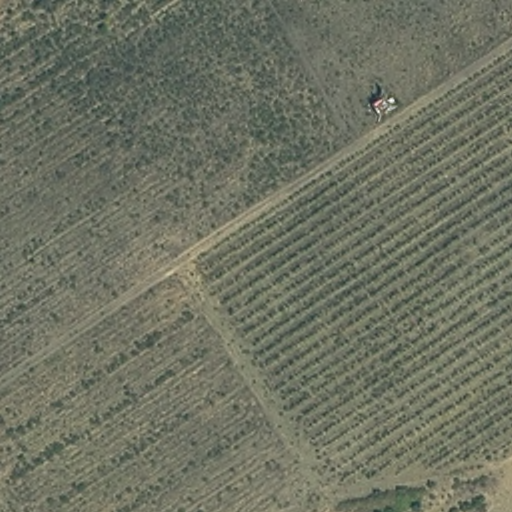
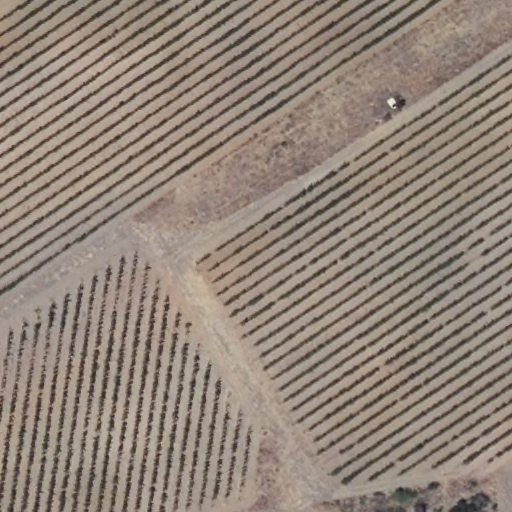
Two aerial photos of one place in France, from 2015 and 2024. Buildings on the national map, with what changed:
unchanged [(394,95),(383,107),(370,95),(381,84),(394,95)]

